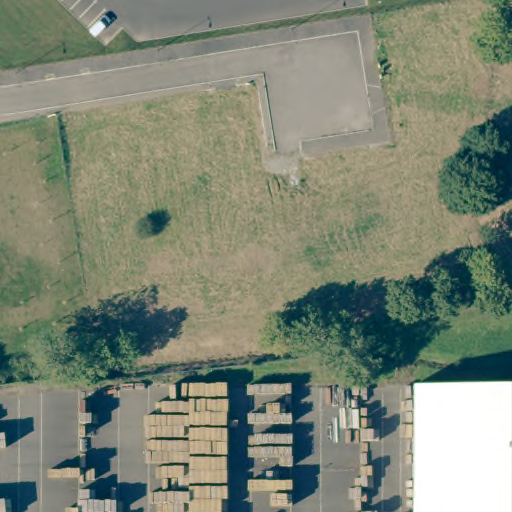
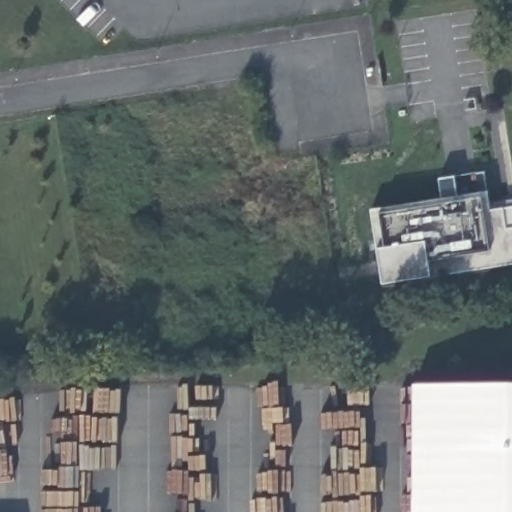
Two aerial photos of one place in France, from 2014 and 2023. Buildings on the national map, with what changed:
new [(488,193),(490,205),(512,201),(512,267),(432,279),(383,286),(378,251),(370,211),(488,193)]
unchanged [(413,385),(512,385),(512,512),(413,512),(413,385)]

